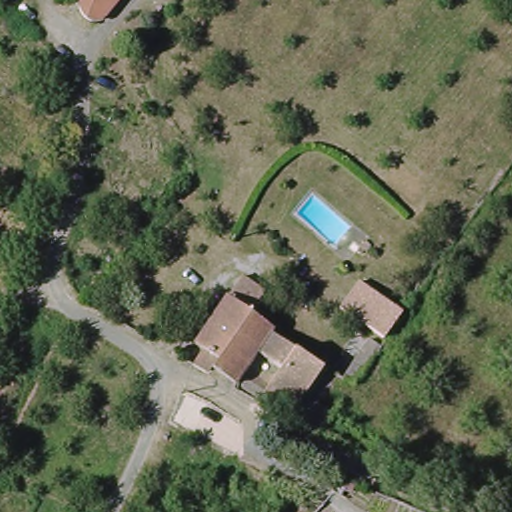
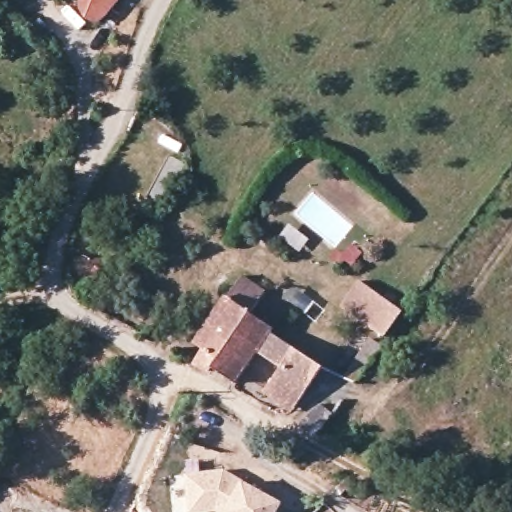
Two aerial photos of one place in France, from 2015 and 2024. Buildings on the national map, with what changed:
unchanged [(88,23),(78,5),(79,0),(121,0),(98,26),(88,23)]
unchanged [(107,53),(110,43),(129,45),(127,63),(107,61),(107,53)]
unchanged [(402,313),(384,337),(342,305),(359,282),(402,313)]
unchanged [(197,346),(225,305),(248,318),(219,362),(197,346)]
unchanged [(281,369),(258,354),(238,384),(214,369),(219,362),(248,318),(270,334),(266,339),(291,354),(305,364),(320,374),(295,411),(280,401),(266,392),(281,369)]
unchanged [(330,406),(314,429),(301,421),(318,399),(330,406)]
new [(224,469),(243,479),(285,504),(279,512),(189,512),(186,474),(224,469)]

